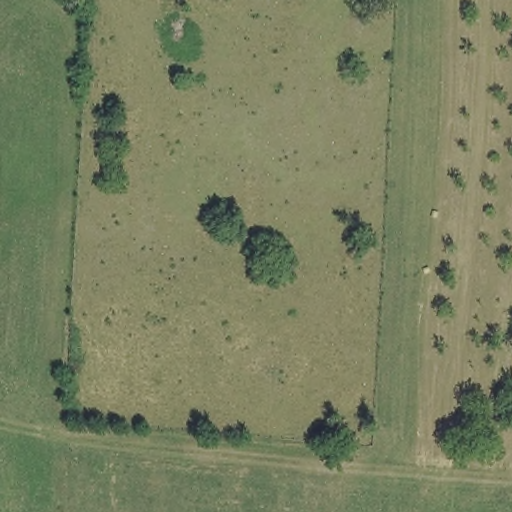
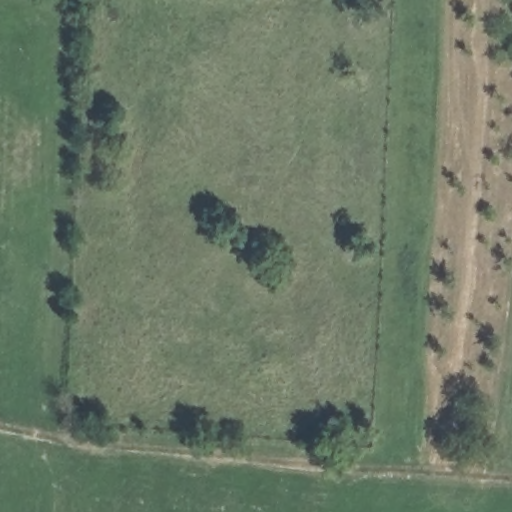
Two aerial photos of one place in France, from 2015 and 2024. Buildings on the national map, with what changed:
[]

